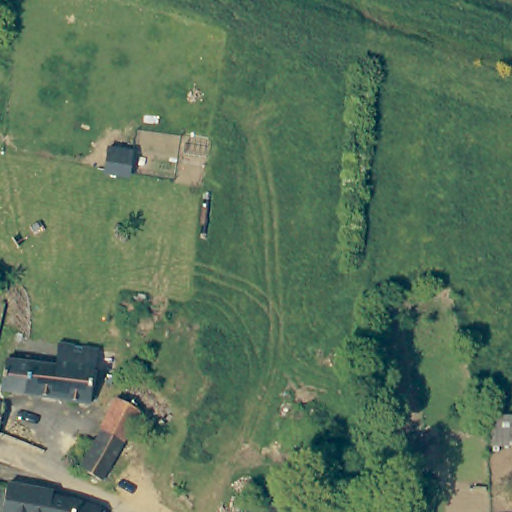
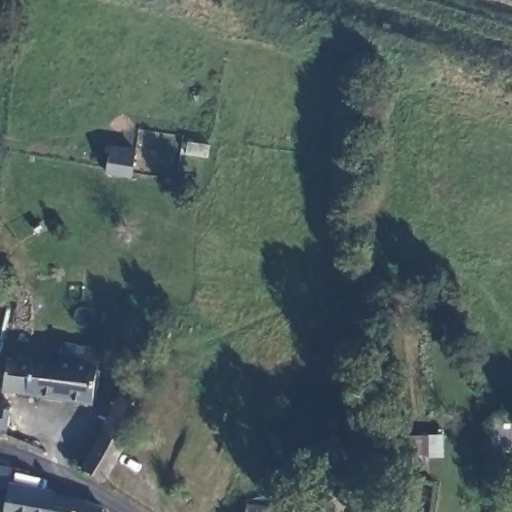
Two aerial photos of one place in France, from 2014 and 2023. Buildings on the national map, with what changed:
unchanged [(53,365),(56,343),(96,348),(88,404),(0,392),(0,383),(3,358),(53,365)]
unchanged [(97,486),(74,473),(97,435),(95,434),(112,403),(136,417),(114,456),(97,486)]
unchanged [(58,497),(58,500),(83,505),(103,512),(9,512),(13,489),(58,497)]

